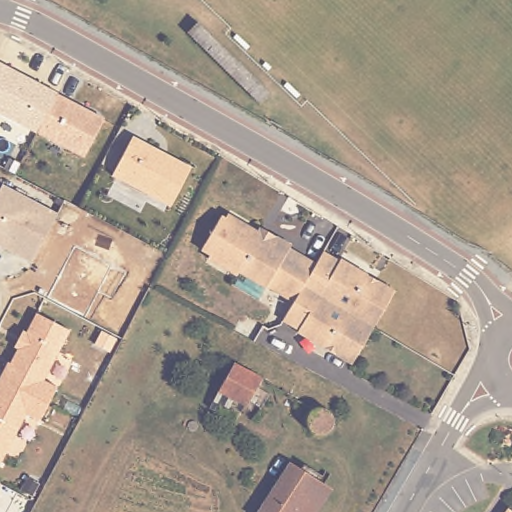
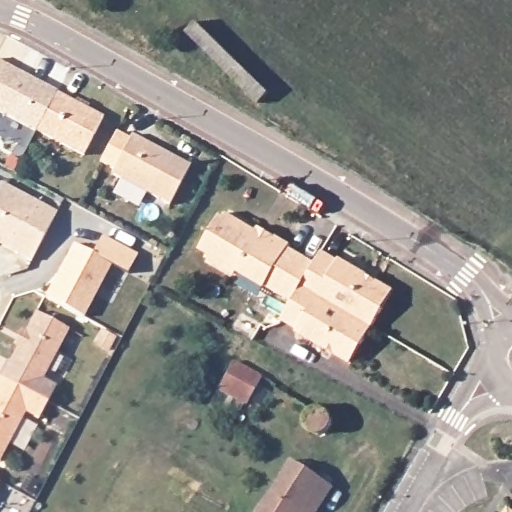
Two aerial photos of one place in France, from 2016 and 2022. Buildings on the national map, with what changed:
unchanged [(199,20),(271,90),(259,103),(188,31),(199,20)]
unchanged [(84,159),(0,114),(0,63),(104,119),(84,159)]
unchanged [(190,166),(169,207),(111,177),(133,135),(190,166)]
unchanged [(57,214),(33,263),(0,246),(0,187),(1,184),(57,214)]
unchanged [(267,284),(265,286),(239,270),(237,273),(209,256),(210,252),(202,247),(222,214),(226,216),(229,212),(257,230),(260,225),(275,235),(291,244),(289,247),(315,263),(302,285),(296,295),(293,301),(267,284)]
new [(74,245),(112,266),(84,319),(46,298),(74,245)]
unchanged [(315,263),(322,252),(339,261),(340,259),(368,277),(376,282),(393,292),(372,328),(302,285),(315,263)]
unchanged [(297,331),(298,329),(282,319),(293,301),(296,295),(302,285),(372,328),(350,364),(332,353),(324,348),(297,331)]
unchanged [(71,330),(46,380),(58,386),(39,420),(39,421),(27,415),(1,464),(0,463),(0,382),(36,313),(71,330)]
unchanged [(213,386),(229,358),(258,374),(241,403),(213,386)]
unchanged [(322,429),(319,430),(318,431),(315,431),(314,431),(312,430),(309,430),(308,429),(305,427),(304,426),(303,424),(302,422),(302,420),(302,418),(302,416),(302,414),(303,412),(304,410),(305,408),(307,407),(308,405),(310,405),(312,404),(314,404),(317,404),(319,404),(320,405),(323,406),(324,407),(325,409),(327,410),(328,412),(328,415),(329,417),(329,419),(328,421),(328,423),(327,425),(325,426),(324,428),(322,429)]
unchanged [(290,463),(324,484),(306,512),(259,512),(290,463)]

